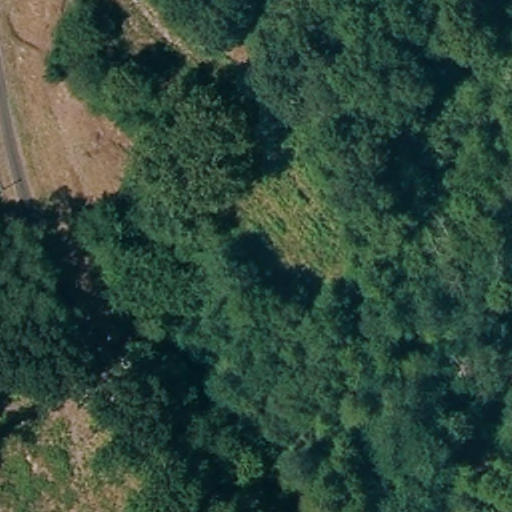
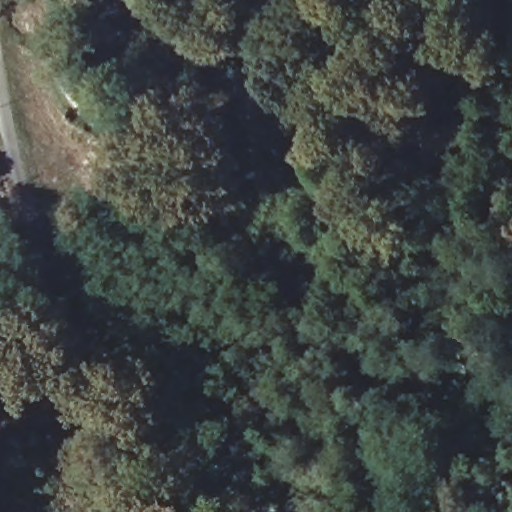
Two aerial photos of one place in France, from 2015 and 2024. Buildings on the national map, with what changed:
[]

